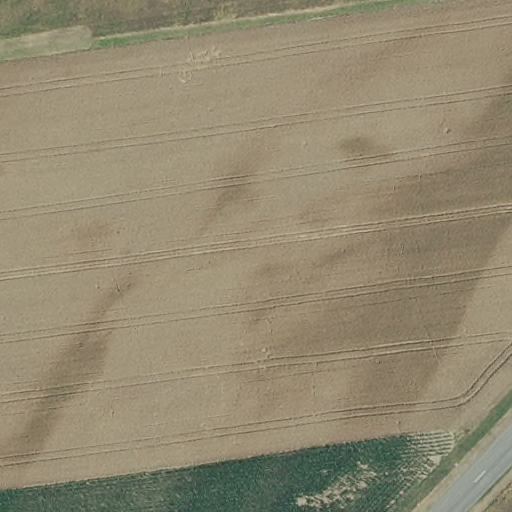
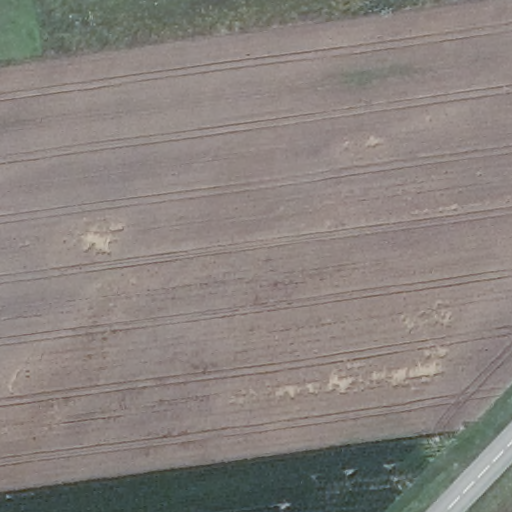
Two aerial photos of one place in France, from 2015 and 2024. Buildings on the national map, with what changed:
[]

